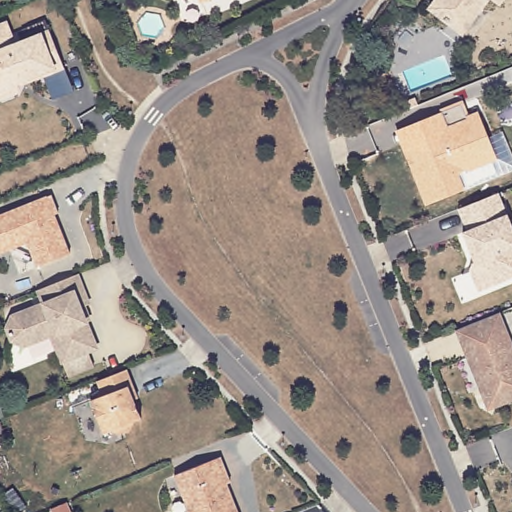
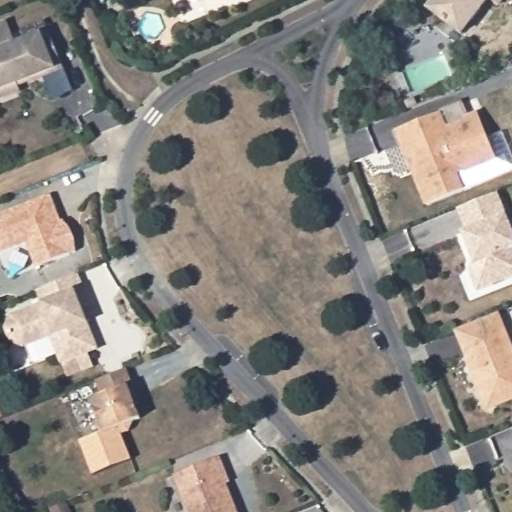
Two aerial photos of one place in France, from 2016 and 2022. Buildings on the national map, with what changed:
unchanged [(202,2),(201,0),(206,0),(202,2)]
unchanged [(462,34),(430,9),(436,0),(488,0),(462,34)]
unchanged [(498,6),(491,0),(503,0),(498,6)]
unchanged [(17,92),(4,97),(0,96),(0,26),(7,23),(15,45),(31,39),(27,27),(46,20),(50,31),(65,69),(45,77),(20,85),(17,92)]
unchanged [(403,144),(397,130),(417,122),(461,104),(467,118),(479,113),(488,137),(480,142),(485,155),(454,167),(463,190),(427,205),(412,167),(410,161),(403,144)]
unchanged [(467,231),(458,209),(498,192),(498,193),(512,228),(512,277),(478,291),(470,271),(473,262),(475,262),(472,256),(463,232),(467,231)]
unchanged [(59,212),(55,214),(70,254),(37,267),(28,242),(0,253),(0,215),(51,195),(59,212)]
unchanged [(69,375),(63,361),(52,334),(25,345),(12,340),(7,327),(13,316),(44,303),(39,289),(40,289),(77,273),(90,303),(85,306),(90,320),(86,321),(97,347),(89,351),(94,365),(69,375)]
unchanged [(512,399),(497,405),(488,401),(480,380),(477,381),(456,330),(456,329),(498,312),(512,346),(512,399)]
unchanged [(127,368),(133,385),(138,397),(134,399),(141,418),(135,421),(130,430),(121,434),(111,430),(105,432),(91,400),(103,395),(97,381),(127,368)]
new [(104,430),(105,432),(111,430),(121,434),(132,460),(92,477),(79,441),(104,430)]
unchanged [(220,457),(226,474),(230,482),(226,483),(237,512),(189,512),(175,475),(220,457)]
unchanged [(55,512),(53,508),(66,502),(70,512),(55,512)]

